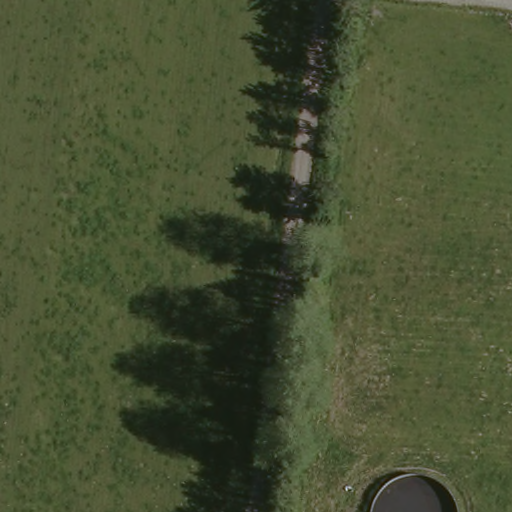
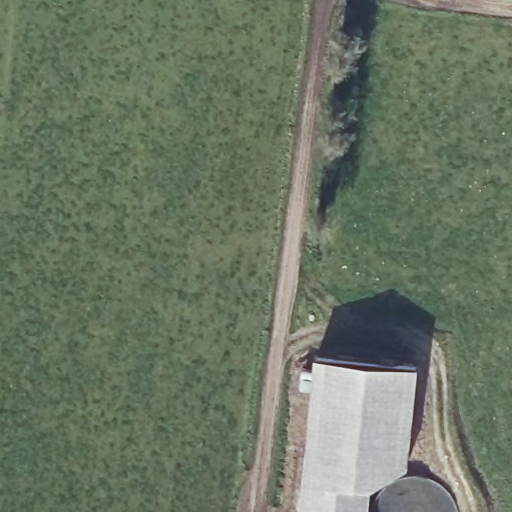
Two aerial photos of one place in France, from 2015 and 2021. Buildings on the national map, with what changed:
new [(417,365),(407,467),(369,488),(367,512),(299,512),(315,355),(417,365)]

